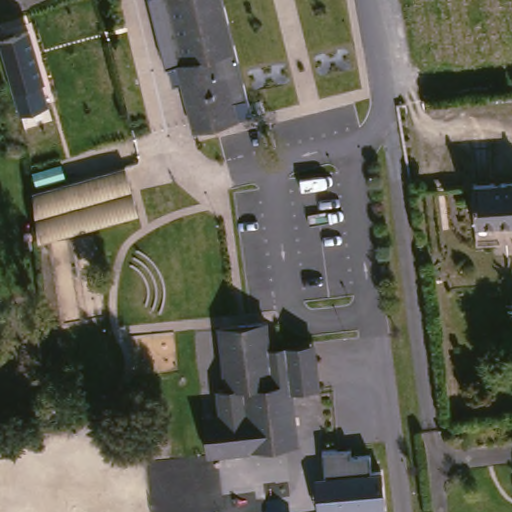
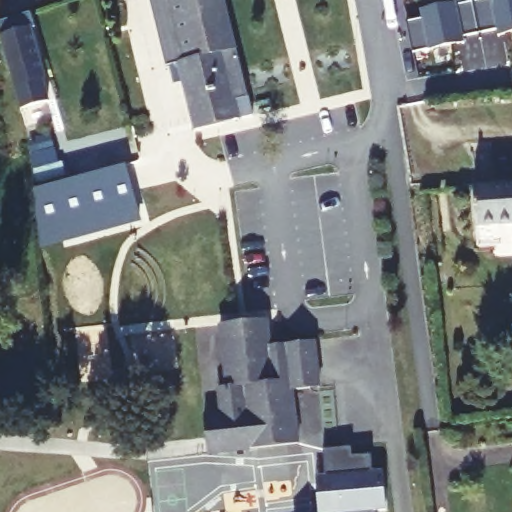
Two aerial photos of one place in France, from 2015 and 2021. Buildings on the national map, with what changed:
unchanged [(245,75),(249,92),(235,95),(240,121),(192,129),(178,64),(166,66),(152,0),(227,0),(239,51),(245,75)]
new [(406,21),(423,18),(422,9),(470,0),(512,0),(512,32),(499,35),(497,29),(462,35),(463,41),(429,49),(413,52),(406,21)]
unchanged [(24,31),(25,31),(39,80),(10,86),(0,47),(0,36),(2,36),(24,31)]
unchanged [(126,169),(138,214),(53,233),(42,189),(126,169)]
unchanged [(479,231),(472,187),(512,183),(512,227),(479,231)]
unchanged [(289,391),(297,445),(201,458),(195,420),(215,418),(212,387),(219,386),(209,324),(262,317),(266,345),(269,361),(297,359),(302,389),(289,391)]
unchanged [(308,341),(310,358),(314,388),(302,389),(297,359),(269,361),(266,345),(308,341)]
unchanged [(325,473),(324,447),(349,445),(349,455),(372,453),(373,468),(384,467),(388,503),(375,504),(376,512),(317,512),(315,474),(325,473)]

